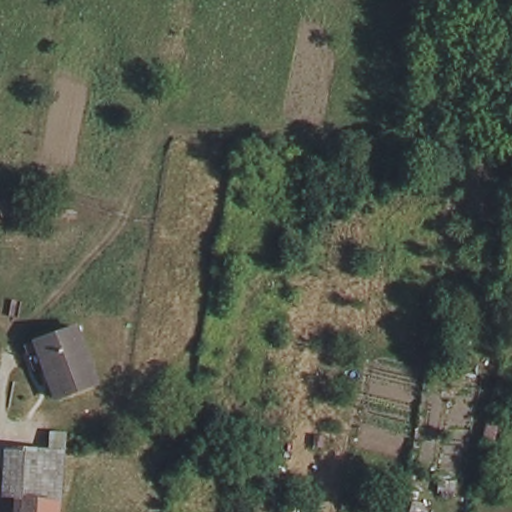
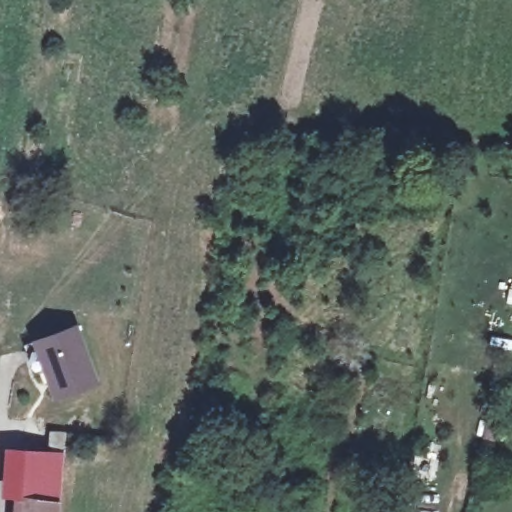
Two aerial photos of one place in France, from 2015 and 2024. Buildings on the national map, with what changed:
unchanged [(55,397),(37,339),(78,325),(96,383),(55,397)]
unchanged [(59,500),(15,499),(3,499),(4,453),(66,452),(64,499),(64,500),(59,500)]
unchanged [(15,512),(15,499),(59,500),(59,512),(15,512)]

